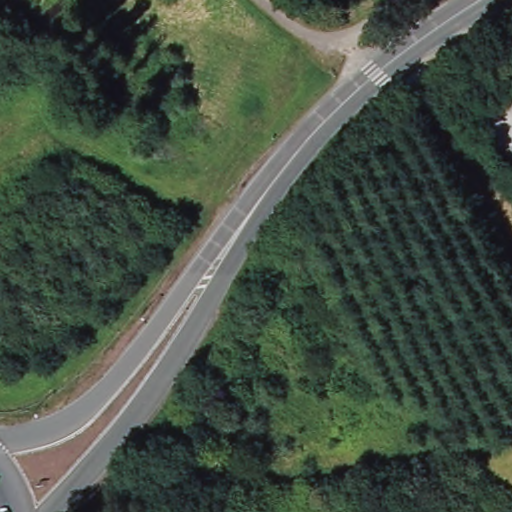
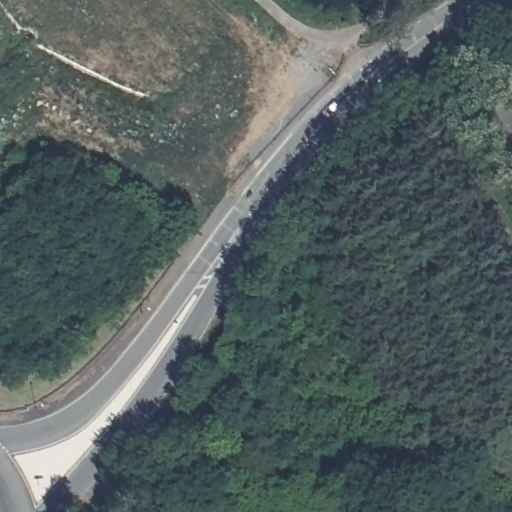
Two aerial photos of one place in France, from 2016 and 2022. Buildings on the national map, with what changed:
[]

